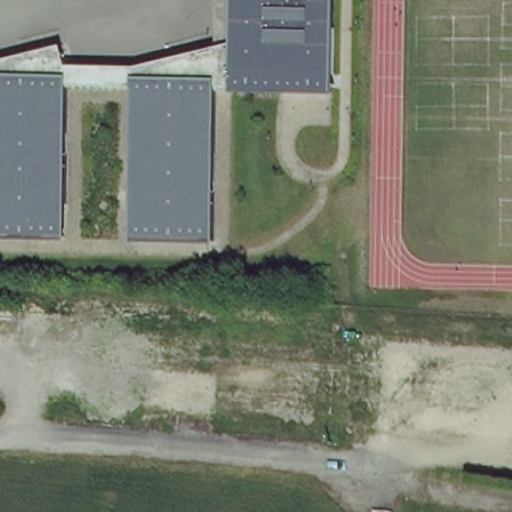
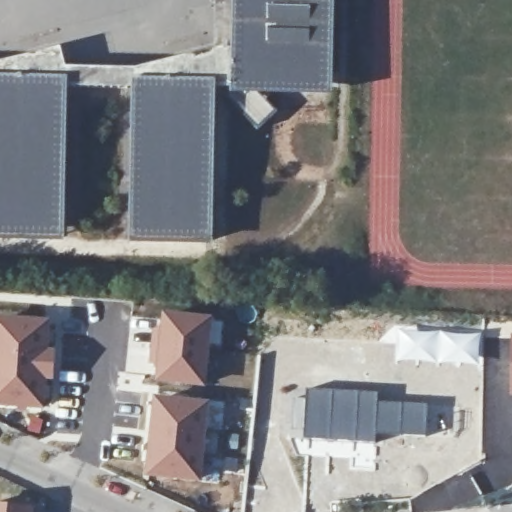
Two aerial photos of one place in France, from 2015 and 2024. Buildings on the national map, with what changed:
unchanged [(232,62),(233,41),(234,0),(334,0),(333,65),(232,62)]
unchanged [(68,46),(67,66),(137,65),(212,42),(233,41),(232,62),(333,65),(332,91),(214,88),(214,77),(132,75),(132,90),(64,88),(65,73),(0,72),(0,60),(68,46)]
unchanged [(65,73),(64,88),(62,193),(0,191),(0,72),(65,73)]
unchanged [(214,77),(214,88),(210,231),(128,229),(132,90),(132,75),(214,77)]
unchanged [(62,193),(61,227),(0,226),(0,191),(62,193)]
new [(152,326),(158,327),(160,311),(215,317),(207,387),(153,380),(154,365),(147,364),(152,326)]
new [(52,318),(53,374),(47,411),(0,406),(0,314),(52,318)]
new [(397,326),(430,329),(482,331),(481,366),(395,362),(397,326)]
new [(512,334),(512,397),(509,396),(510,333),(512,334)]
new [(293,397),(306,397),(306,389),(378,391),(378,401),(376,436),(376,443),(292,439),(293,397)]
new [(154,396),(211,401),(202,482),(142,476),(154,396)]
new [(378,401),(428,403),(427,436),(376,436),(378,401)]
new [(32,510),(40,511),(40,512),(0,512),(0,506),(32,510)]

